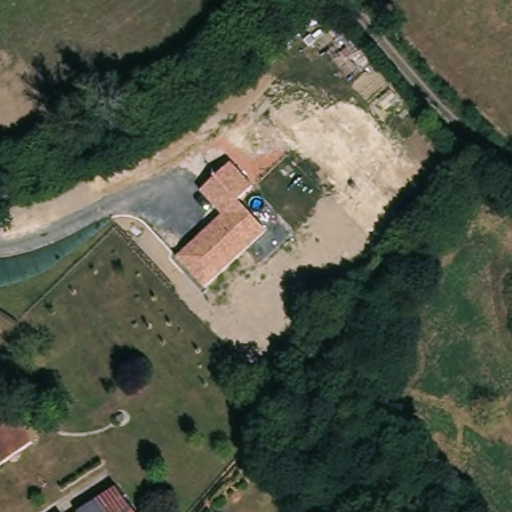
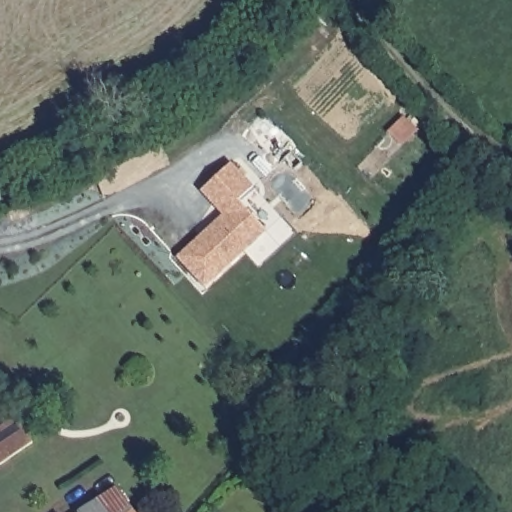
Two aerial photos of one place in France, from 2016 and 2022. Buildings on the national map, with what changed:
unchanged [(177,256),(220,213),(201,190),(230,162),(253,186),(237,199),(265,230),(203,287),(177,256)]
unchanged [(31,441),(0,464),(0,428),(16,417),(31,441)]
unchanged [(125,512),(84,512),(119,489),(133,506),(125,512)]
unchanged [(133,506),(138,512),(125,512),(133,506)]

